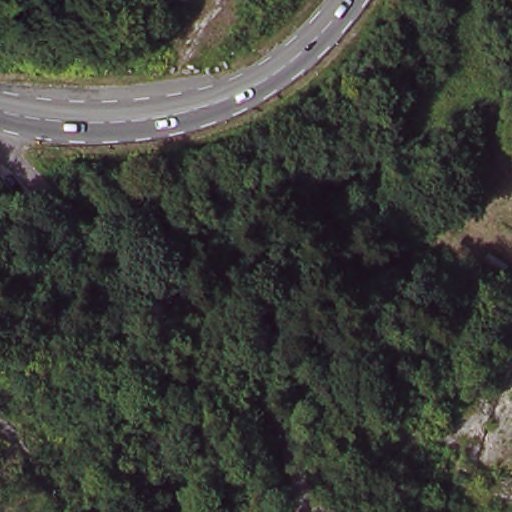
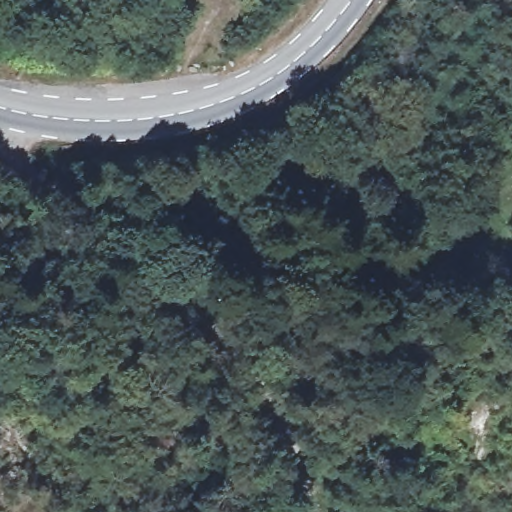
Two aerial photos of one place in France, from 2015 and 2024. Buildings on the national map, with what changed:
unchanged [(480,275),(491,257),(512,269),(512,284),(508,292),(480,275)]

